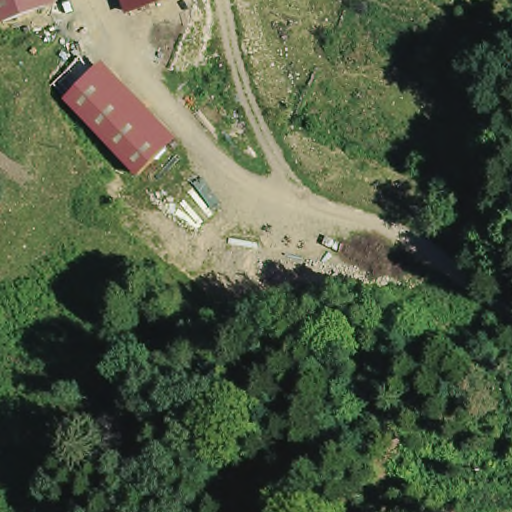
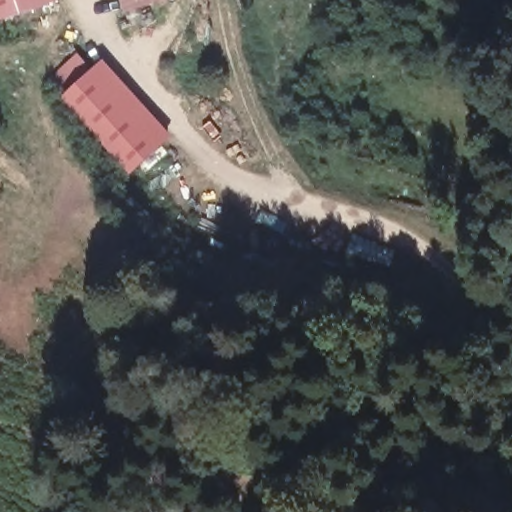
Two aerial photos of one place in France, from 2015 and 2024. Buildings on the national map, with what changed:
unchanged [(0,8),(0,0),(22,0),(0,8)]
unchanged [(127,13),(122,0),(167,0),(127,13)]
unchanged [(60,90),(99,63),(152,146),(126,170),(60,90)]

